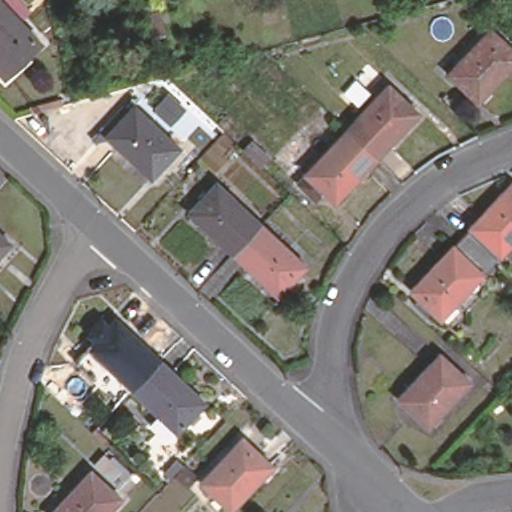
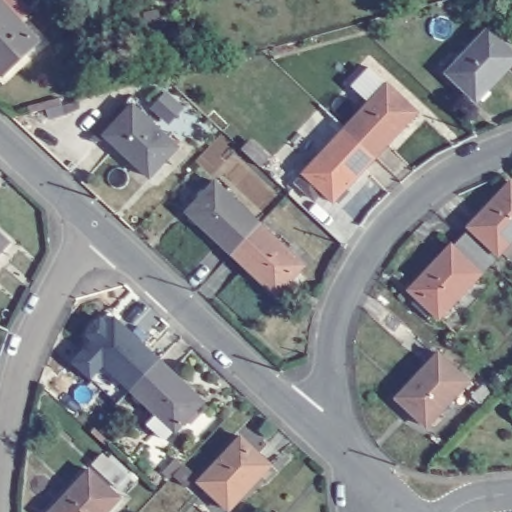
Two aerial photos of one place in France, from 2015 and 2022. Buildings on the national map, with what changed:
unchanged [(3,75),(0,71),(0,3),(37,40),(3,75)]
unchanged [(478,105),(448,77),(491,32),(512,53),(512,69),(478,105)]
unchanged [(347,133),(389,88),(419,116),(377,161),(347,133)]
unchanged [(153,180),(106,138),(134,108),(180,150),(153,180)]
unchanged [(336,206),(305,178),(347,133),(377,161),(336,206)]
unchanged [(512,186),(512,252),(440,327),(404,295),(509,183),(512,186)]
unchanged [(228,257),(184,216),(213,185),(256,226),(228,257)]
unchanged [(302,269),(273,300),(228,257),(256,226),(302,269)]
unchanged [(0,262),(0,234),(14,246),(0,262)]
unchanged [(88,351),(115,321),(159,362),(131,391),(88,351)]
unchanged [(423,431),(393,403),(439,353),(469,381),(423,431)]
unchanged [(159,362),(204,404),(177,433),(131,391),(159,362)]
unchanged [(230,512),(225,512),(196,486),(238,440),(269,469),(230,512)]
unchanged [(111,512),(55,512),(91,473),(121,501),(111,512)]

